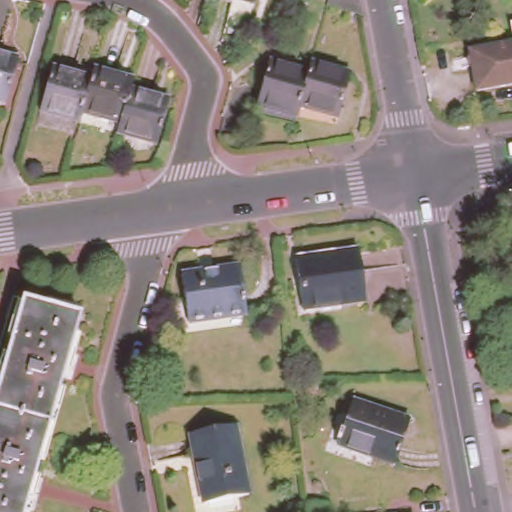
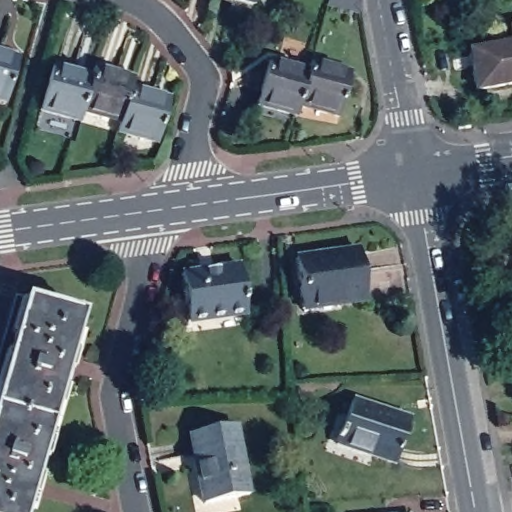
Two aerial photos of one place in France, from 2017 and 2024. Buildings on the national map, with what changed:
unchanged [(246,0),(254,0),(253,2),(246,0)]
unchanged [(357,0),(360,16),(326,8),(329,0),(357,0)]
unchanged [(505,38),(504,21),(512,19),(512,85),(474,91),(467,46),(505,38)]
unchanged [(5,103),(0,102),(0,55),(17,60),(5,103)]
unchanged [(77,113),(39,102),(51,59),(90,70),(80,104),(77,113)]
unchanged [(257,103),(268,59),(307,70),(298,103),(295,113),(257,103)]
unchanged [(90,70),(92,60),(132,71),(129,81),(120,115),(80,104),(90,70)]
unchanged [(307,70),(310,60),(350,70),(338,114),(298,103),(307,70)]
unchanged [(129,81),(169,92),(156,135),(117,124),(120,115),(129,81)]
unchanged [(296,302),(289,252),(352,244),(359,293),(296,302)]
unchanged [(187,320),(180,273),(239,264),(245,312),(187,320)]
unchanged [(24,512),(0,512),(0,339),(12,294),(80,314),(24,512)]
unchanged [(381,412),(403,420),(390,461),(332,442),(348,398),(382,409),(381,412)]
unchanged [(242,492),(198,501),(185,431),(228,422),(242,492)]

